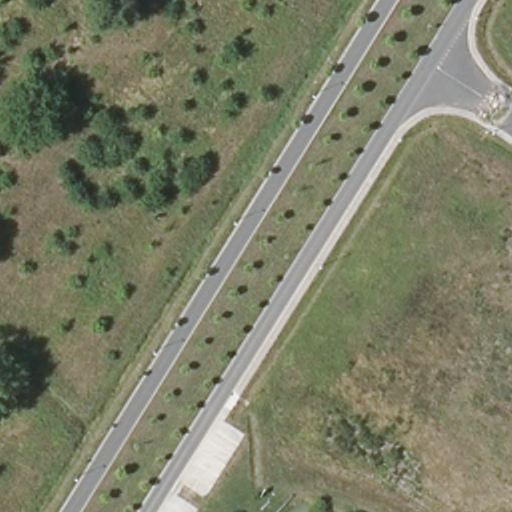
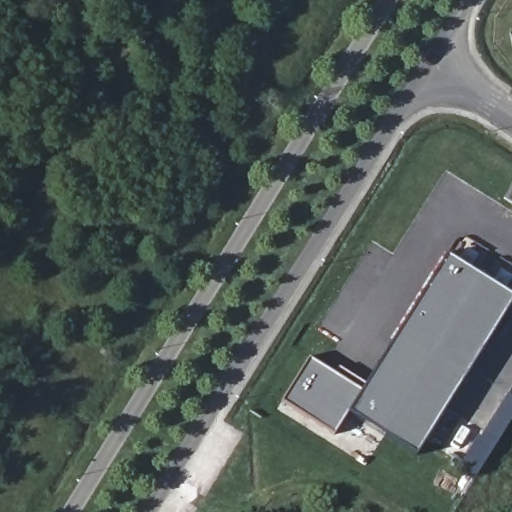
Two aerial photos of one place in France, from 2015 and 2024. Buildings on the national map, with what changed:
new [(312,355),(365,388),(451,251),(512,289),(512,307),(420,453),(352,410),(338,433),(285,399),(312,355)]

